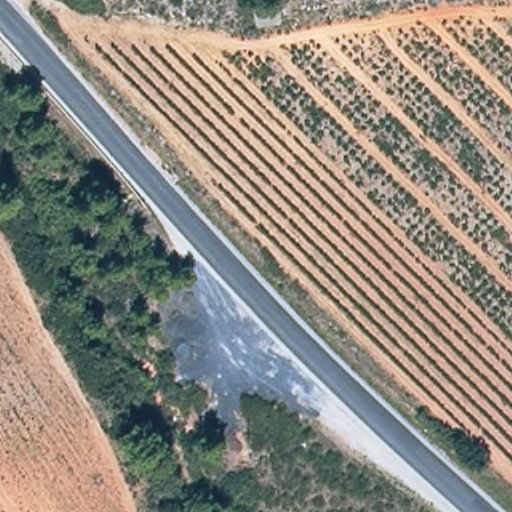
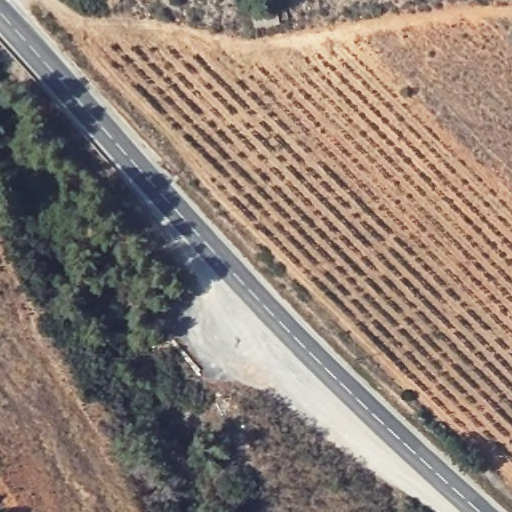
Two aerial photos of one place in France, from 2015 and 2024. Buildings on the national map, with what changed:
unchanged [(277,14),(279,28),(255,31),(253,17),(277,14)]

